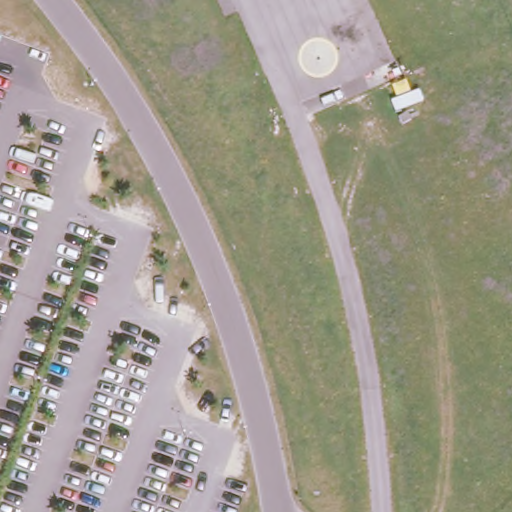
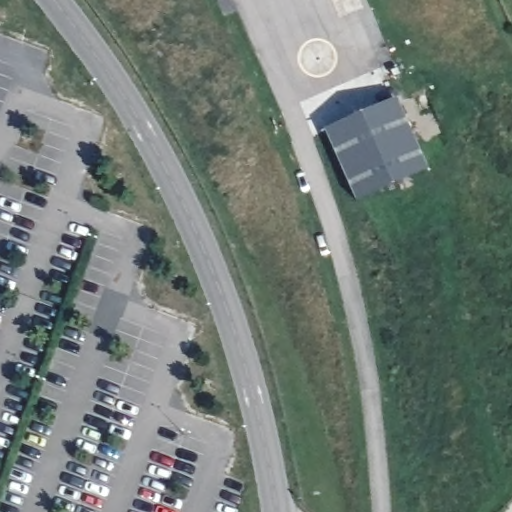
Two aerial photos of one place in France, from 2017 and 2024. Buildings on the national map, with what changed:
new [(325,134),(395,103),(425,172),(355,203),(325,134)]
demolished [(37,142),(23,181),(0,171),(0,129),(37,142)]

